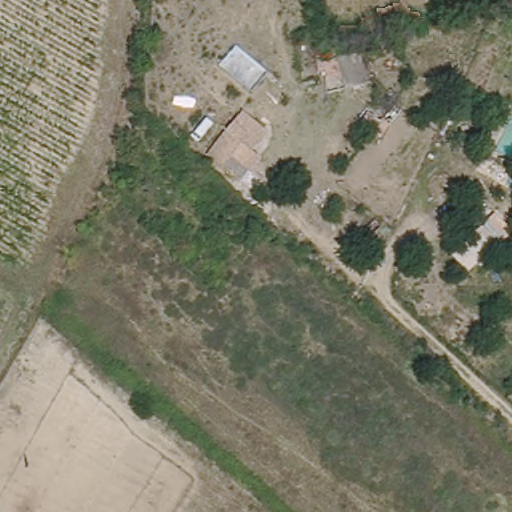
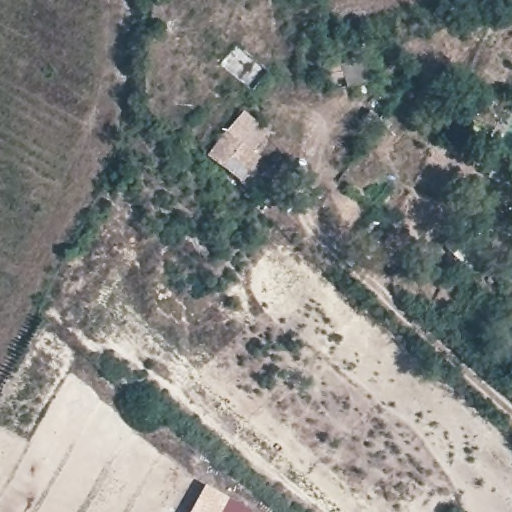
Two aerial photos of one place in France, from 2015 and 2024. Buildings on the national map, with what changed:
unchanged [(234,180),(203,156),(222,131),(238,111),(262,129),(247,149),(254,154),(234,180)]
unchanged [(512,232),(512,238),(499,251),(478,230),(496,213),(512,232)]
new [(252,510),(251,512),(187,512),(204,482),(252,510)]

